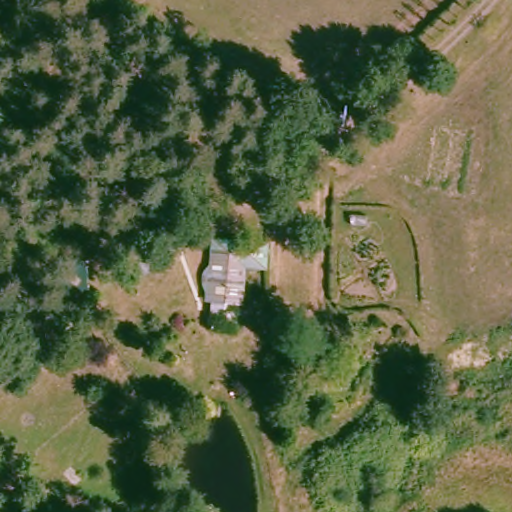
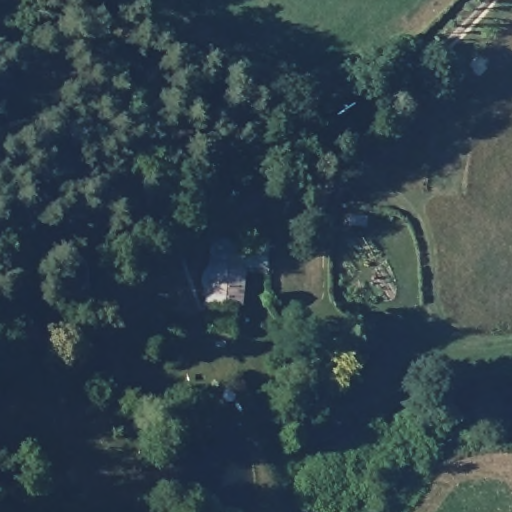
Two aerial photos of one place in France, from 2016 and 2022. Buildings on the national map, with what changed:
unchanged [(181,224),(189,237),(156,260),(148,247),(181,224)]
unchanged [(260,244),(259,268),(241,268),(238,304),(208,301),(211,242),(260,244)]

